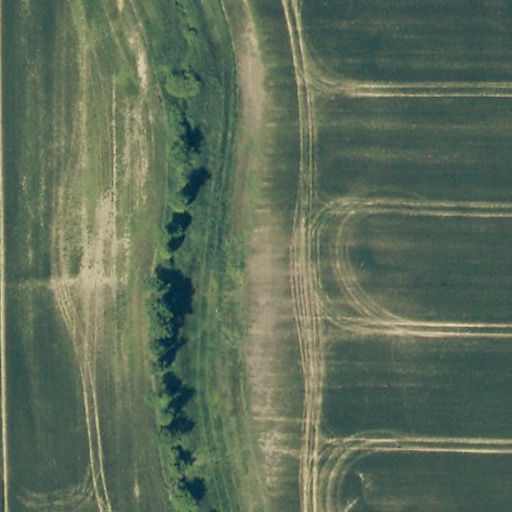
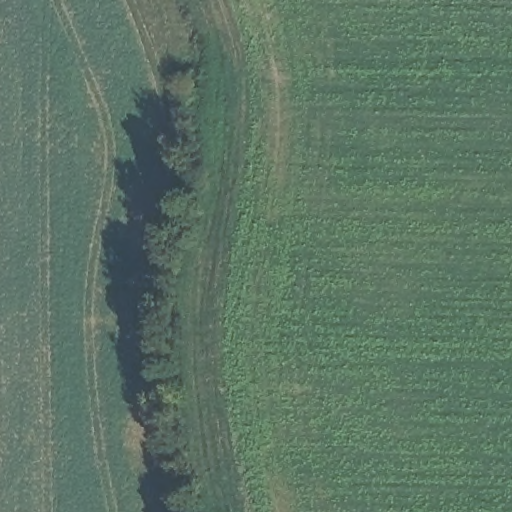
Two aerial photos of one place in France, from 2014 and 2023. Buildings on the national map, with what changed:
[]

